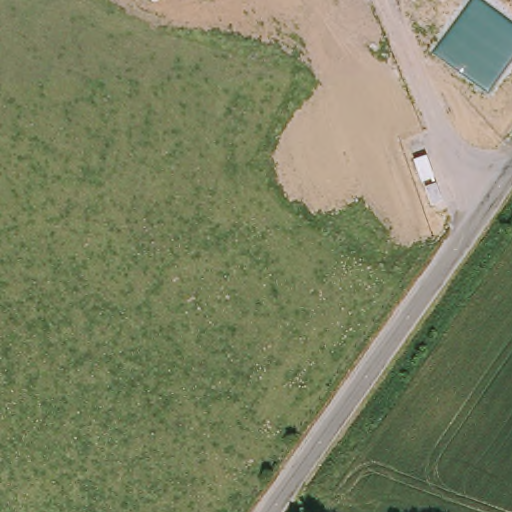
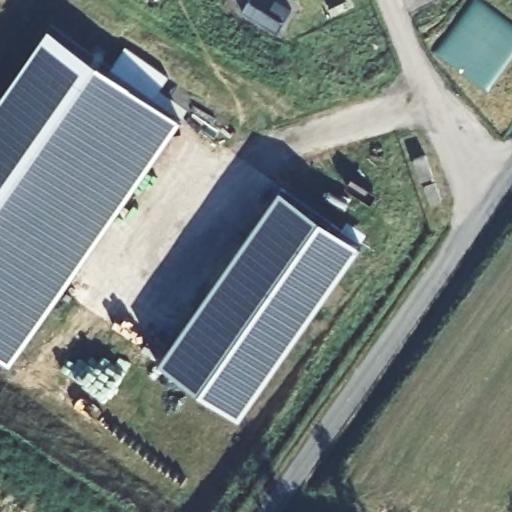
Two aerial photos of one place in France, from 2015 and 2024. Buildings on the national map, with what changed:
new [(189,109),(10,365),(0,357),(0,89),(50,15),(189,109)]
new [(287,177),(367,232),(243,413),(162,357),(287,177)]

